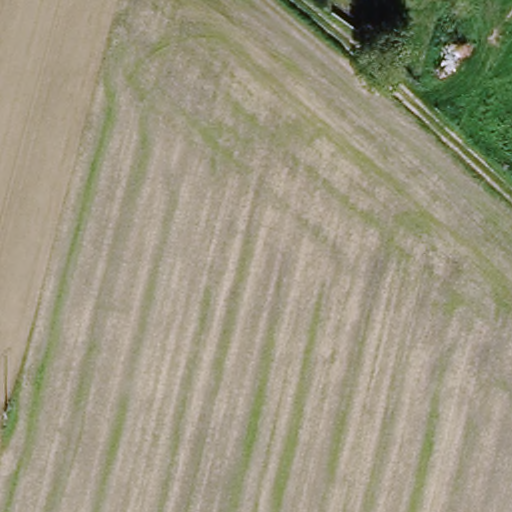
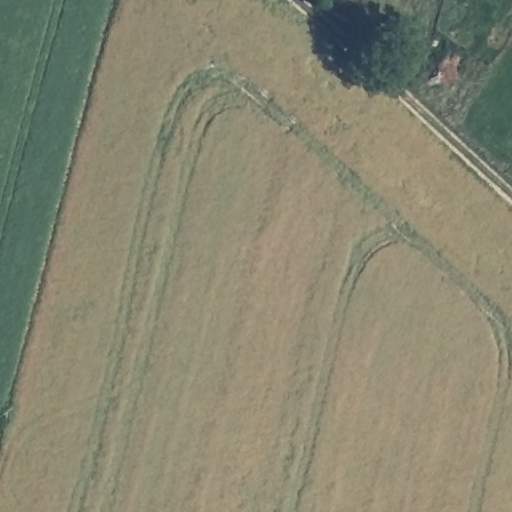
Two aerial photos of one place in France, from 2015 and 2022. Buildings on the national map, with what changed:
[]

